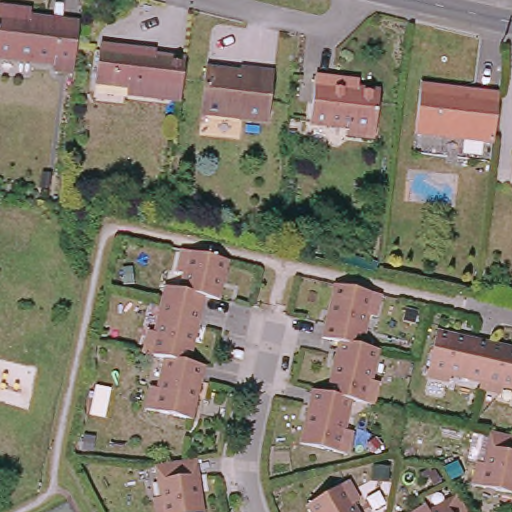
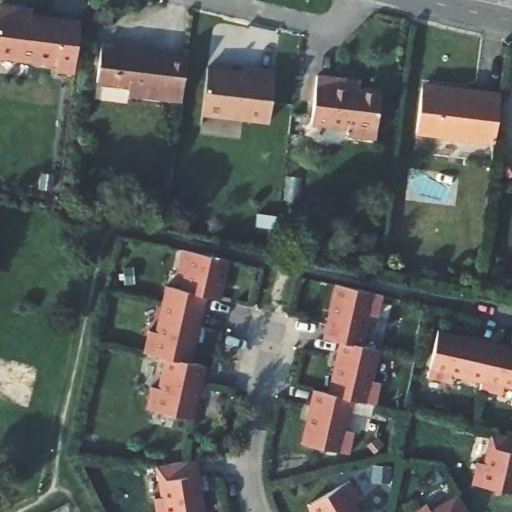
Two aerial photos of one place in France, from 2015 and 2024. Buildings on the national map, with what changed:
unchanged [(15,8),(75,16),(69,67),(48,64),(49,58),(0,51),(0,0),(3,0),(16,2),(15,8)]
unchanged [(148,48),(148,52),(177,56),(172,98),(119,91),(120,83),(87,79),(92,41),(148,48)]
unchanged [(264,118),(197,109),(204,65),(237,69),(237,62),(271,67),(264,118)]
unchanged [(343,77),(359,79),(357,87),(377,90),(372,137),(342,133),(344,126),(306,121),(312,73),(343,77)]
unchanged [(417,80),(462,87),(462,82),(495,87),(490,135),(411,125),(417,80)]
unchanged [(210,254),(225,257),(215,298),(200,295),(195,319),(194,324),(187,358),(200,362),(197,379),(189,417),(145,406),(150,384),(157,386),(165,353),(144,349),(148,326),(156,328),(162,299),(176,302),(185,266),(179,264),(182,248),(210,254)]
unchanged [(373,291),(369,311),(362,309),(355,340),(372,344),(365,374),(372,376),(367,399),(345,395),(338,426),(345,428),(342,449),(297,439),(305,400),(308,387),(309,386),(323,390),(331,351),(334,337),(327,335),(318,333),(321,319),(322,318),(330,280),(373,291)]
unchanged [(497,394),(475,389),(477,381),(445,374),(444,381),(422,375),(432,332),(472,341),(487,344),(512,350),(512,389),(500,385),(497,394)]
unchanged [(474,457),(482,459),(490,427),(512,433),(512,491),(469,480),(474,457)]
unchanged [(194,471),(200,510),(186,512),(154,512),(152,494),(160,493),(155,460),(192,456),(194,471)]
unchanged [(307,499),(345,476),(357,494),(350,499),(357,512),(315,512),(307,499)]
unchanged [(424,503),(427,509),(457,494),(467,512),(407,512),(424,503)]

